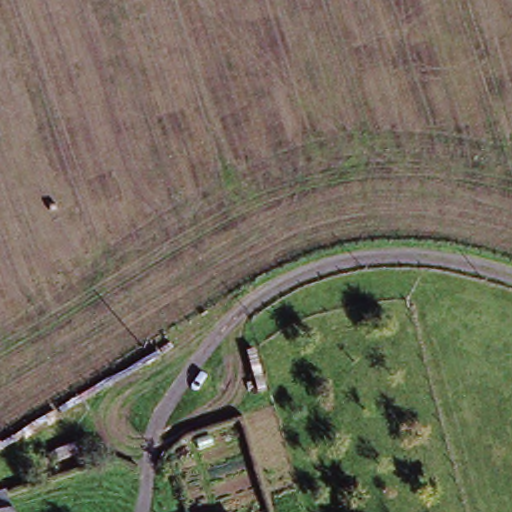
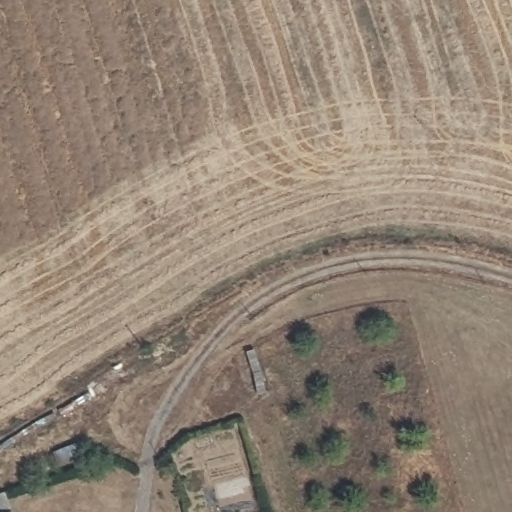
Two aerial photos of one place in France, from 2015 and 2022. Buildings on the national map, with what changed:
unchanged [(15,495),(18,508),(19,512),(0,512),(0,499),(15,495)]

